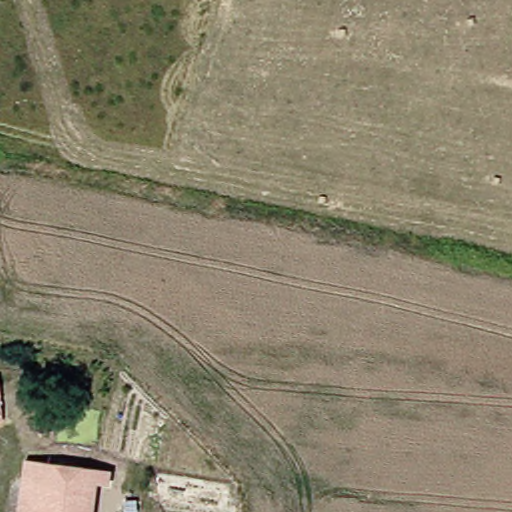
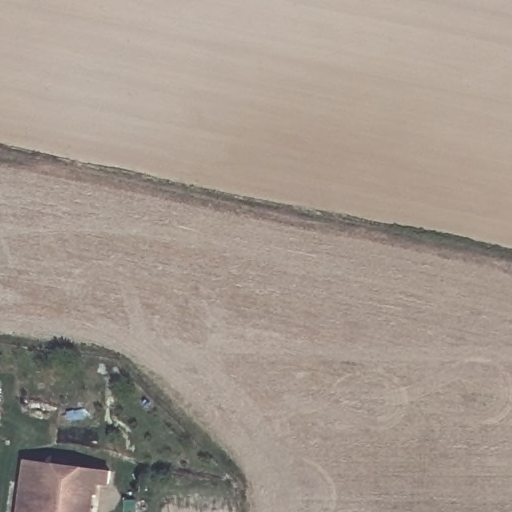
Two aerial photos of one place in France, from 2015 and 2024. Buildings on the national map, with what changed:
unchanged [(104,487),(90,485),(87,512),(10,512),(16,460),(106,471),(104,487)]

